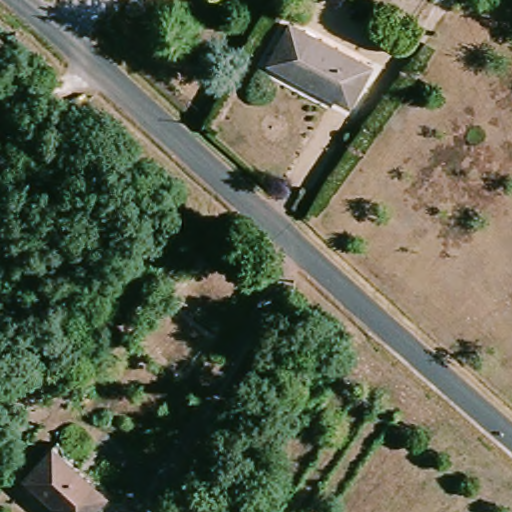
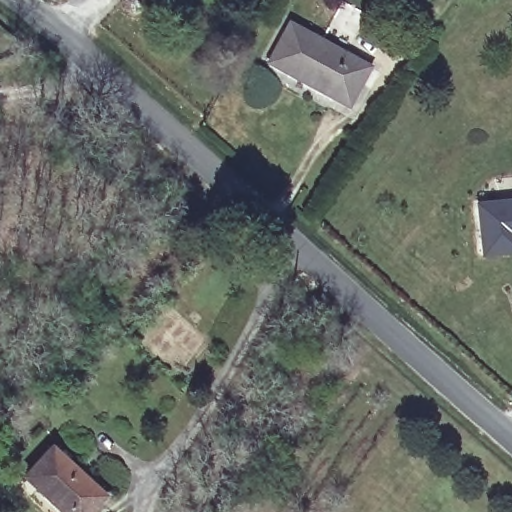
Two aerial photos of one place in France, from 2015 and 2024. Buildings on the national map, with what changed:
unchanged [(267,65),(291,27),(369,75),(344,113),(267,65)]
new [(482,245),(478,202),(512,198),(512,248),(483,251),(482,245)]
unchanged [(21,475),(46,448),(98,496),(83,512),(62,512),(21,475)]

